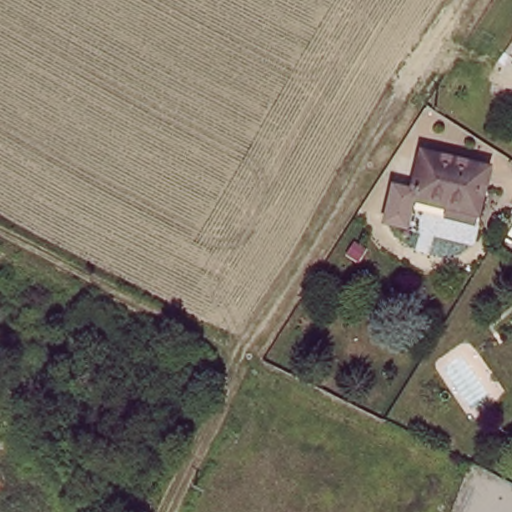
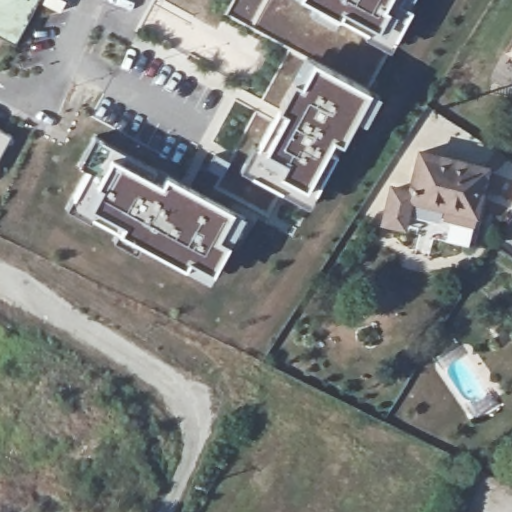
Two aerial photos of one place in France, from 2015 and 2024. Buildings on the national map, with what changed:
new [(15,43),(0,35),(0,0),(38,0),(15,43)]
new [(402,3),(415,10),(395,50),(304,0),(403,0),(402,3)]
new [(266,159),(259,155),(302,83),(308,86),(321,63),(375,94),(349,147),(342,143),(336,153),(343,158),(313,205),(256,175),(266,159)]
new [(12,134),(0,156),(0,127),(12,134)]
new [(161,170),(158,178),(170,186),(175,177),(240,213),(224,243),(235,249),(220,275),(199,263),(194,274),(92,219),(98,210),(78,198),(93,173),(84,166),(102,137),(161,170)]
unchanged [(443,217),(446,206),(417,199),(408,197),(410,189),(420,150),(487,166),(473,223),(443,217)]
new [(408,197),(417,199),(410,232),(384,227),(394,185),(410,189),(408,197)]

